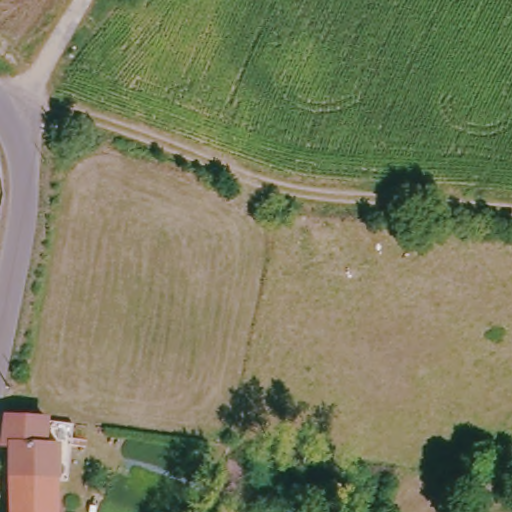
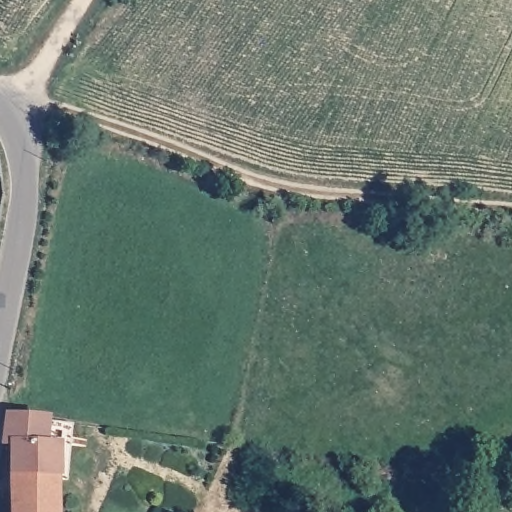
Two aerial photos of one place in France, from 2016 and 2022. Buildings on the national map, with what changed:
unchanged [(61,512),(11,512),(13,447),(0,445),(0,442),(7,414),(63,422),(61,512)]

